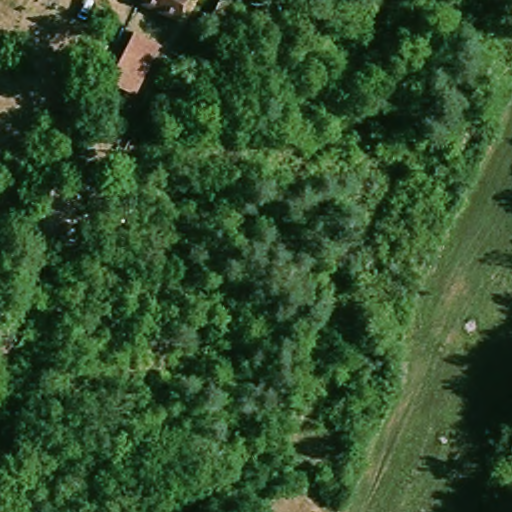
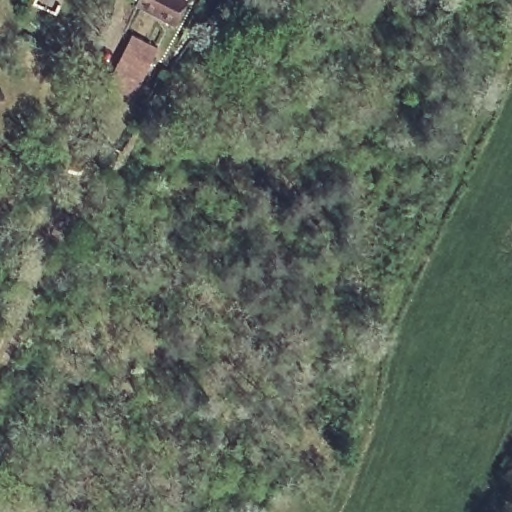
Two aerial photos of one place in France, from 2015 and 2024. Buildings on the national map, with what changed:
unchanged [(155,0),(194,0),(188,13),(155,0)]
unchanged [(125,36),(154,47),(134,97),(105,87),(125,36)]
unchanged [(106,117),(123,125),(115,145),(98,137),(106,117)]

